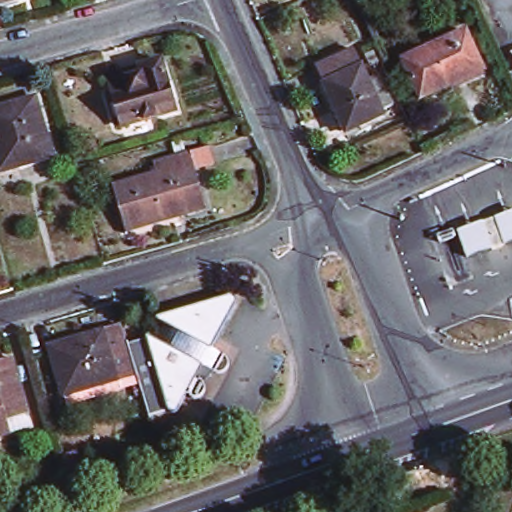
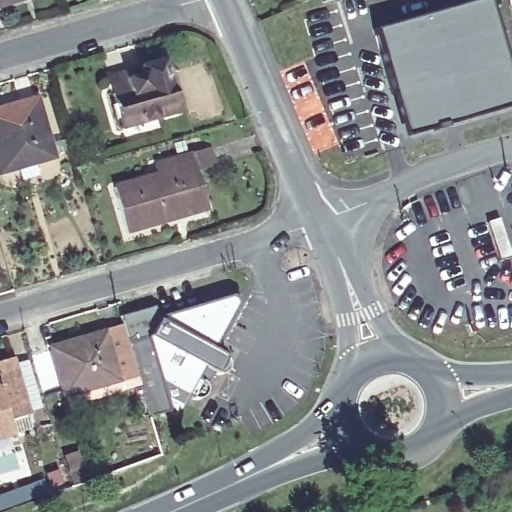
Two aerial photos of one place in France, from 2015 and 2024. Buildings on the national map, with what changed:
unchanged [(0,3),(0,0),(12,0),(0,3)]
new [(374,30),(477,0),(487,0),(512,87),(512,108),(404,137),(374,30)]
demolished [(421,100),(403,60),(467,30),(484,71),(421,100)]
demolished [(386,116),(346,134),(323,83),(325,82),(317,67),(353,50),(360,67),(363,66),(369,80),(382,109),(386,116)]
unchanged [(175,111),(119,128),(111,98),(105,75),(134,67),(160,60),(175,111)]
unchanged [(0,173),(0,108),(34,97),(51,157),(0,173)]
unchanged [(206,209),(125,232),(111,186),(156,173),(153,164),(189,153),(206,209)]
demolished [(469,260),(458,230),(512,211),(512,245),(469,260)]
unchanged [(166,412),(158,388),(145,344),(144,343),(144,342),(145,340),(146,340),(147,341),(156,327),(154,325),(154,324),(155,323),(156,323),(230,300),(233,300),(234,300),(235,301),(236,304),(237,305),(237,308),(236,311),(211,355),(222,360),(224,361),(226,363),(226,366),(226,369),(226,371),(225,373),(223,375),(221,377),(218,378),(215,379),(213,378),(211,377),(207,375),(202,371),(196,383),(198,385),(201,387),(202,388),(203,390),(204,393),(204,394),(204,397),(203,398),(201,400),(199,402),(196,404),(193,404),(191,404),(188,404),(186,402),(179,417),(178,419),(176,419),(174,419),(171,419),(169,418),(166,416),(166,412)]
unchanged [(120,331),(126,350),(136,380),(65,402),(50,353),(120,331)]
unchanged [(126,350),(145,344),(158,388),(166,412),(166,416),(148,422),(136,380),(126,350)]
unchanged [(4,424),(9,440),(0,443),(0,367),(11,363),(28,417),(4,424)]

